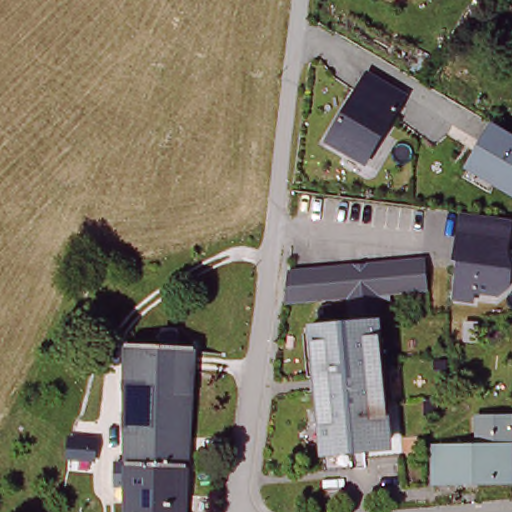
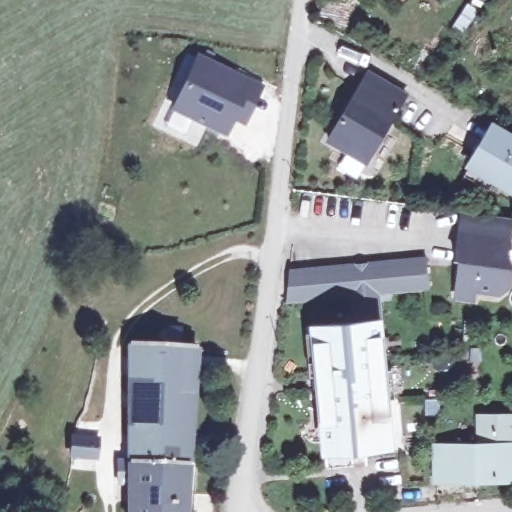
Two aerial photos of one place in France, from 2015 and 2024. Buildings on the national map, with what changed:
new [(236,122),(227,139),(170,112),(198,55),(263,88),(246,128),(236,122)]
unchanged [(405,97),(366,165),(328,143),(367,75),(405,97)]
unchanged [(468,164),(491,125),(512,137),(512,189),(468,164)]
unchanged [(507,266),(512,266),(512,280),(512,284),(502,291),(477,289),(476,300),(458,297),(462,262),(458,261),(461,235),(510,240),(507,266)]
unchanged [(423,255),(426,285),(376,290),(366,291),(363,261),(372,260),(423,255)]
unchanged [(363,261),(366,291),(376,290),(379,317),(350,320),(347,293),(356,292),(353,263),(363,261)]
unchanged [(353,263),(356,292),(347,293),(288,300),(284,271),(353,263)]
unchanged [(393,437),(353,441),(356,466),(328,470),(310,325),(350,320),(379,317),(385,372),(393,437)]
unchanged [(177,337),(189,337),(179,512),(124,512),(125,416),(126,335),(158,336),(159,322),(176,322),(177,337)]
unchanged [(484,416),(512,415),(512,477),(443,480),(441,446),(485,445),(484,431),(484,416)]
unchanged [(74,453),(74,452),(75,444),(75,440),(76,433),(100,435),(98,467),(73,466),(74,453)]

